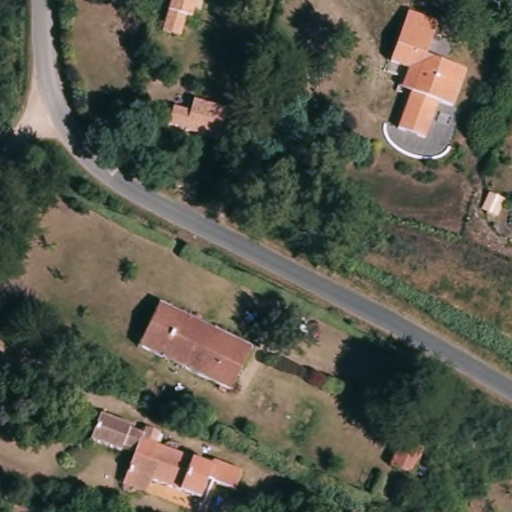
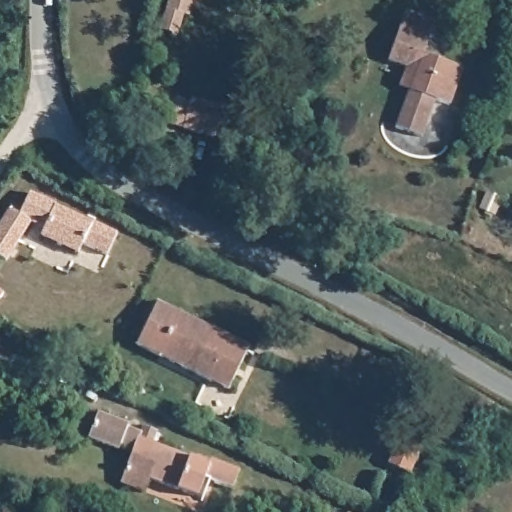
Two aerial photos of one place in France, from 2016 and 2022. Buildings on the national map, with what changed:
unchanged [(191,17),(186,16),(181,36),(160,29),(169,0),(196,0),(191,17)]
unchanged [(459,66),(445,102),(434,98),(420,133),(392,123),(406,87),(396,83),(403,63),(386,56),(400,19),(405,6),(435,18),(430,30),(421,51),(459,66)]
unchanged [(220,142),(167,125),(172,105),(190,110),(195,98),(229,108),(220,142)]
new [(21,212),(31,189),(49,197),(45,203),(91,224),(92,223),(117,234),(107,255),(82,244),(78,253),(41,236),(45,229),(30,222),(9,257),(0,252),(0,222),(10,205),(21,212)]
new [(0,296),(0,290),(3,292),(0,296)]
unchanged [(157,298),(249,342),(229,384),(137,340),(157,298)]
unchanged [(124,470),(131,449),(119,444),(117,450),(87,438),(96,415),(126,425),(125,428),(139,432),(141,427),(156,433),(152,444),(208,464),(210,458),(240,469),(233,488),(208,480),(201,498),(147,479),(142,490),(120,482),(124,470)]
unchanged [(398,444),(421,447),(418,476),(395,474),(398,444)]
unchanged [(351,512),(346,512),(347,510),(351,512)]

